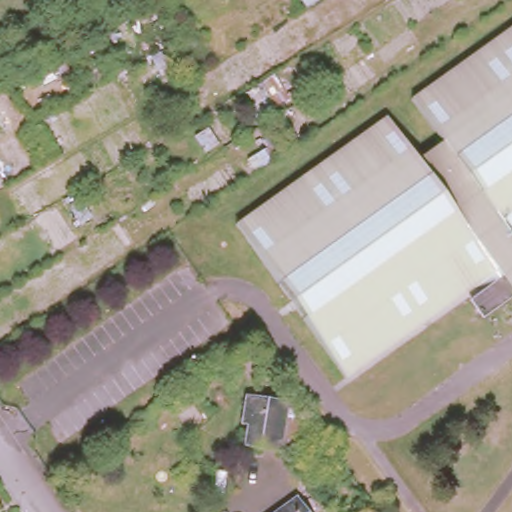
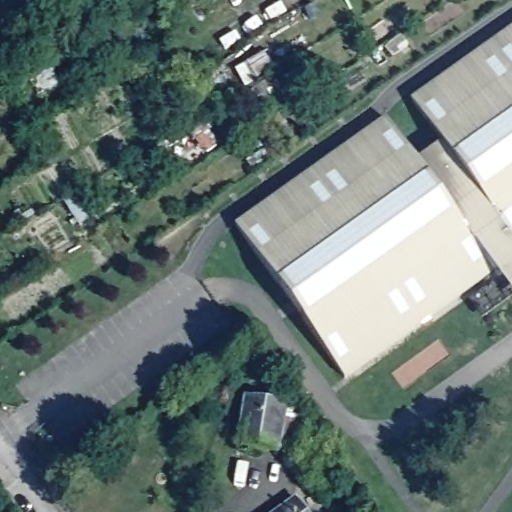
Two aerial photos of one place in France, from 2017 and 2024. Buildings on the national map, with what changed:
unchanged [(493,269),(343,374),(234,218),(385,114),(414,156),(444,135),(414,93),(512,26),(512,267),(498,276),(493,269)]
unchanged [(468,297),(498,276),(512,267),(512,295),(481,316),(468,297)]
unchanged [(248,411),(251,394),(291,400),(283,449),(249,444),(253,413),(248,411)]
unchanged [(303,512),(264,512),(290,494),(303,512)]

